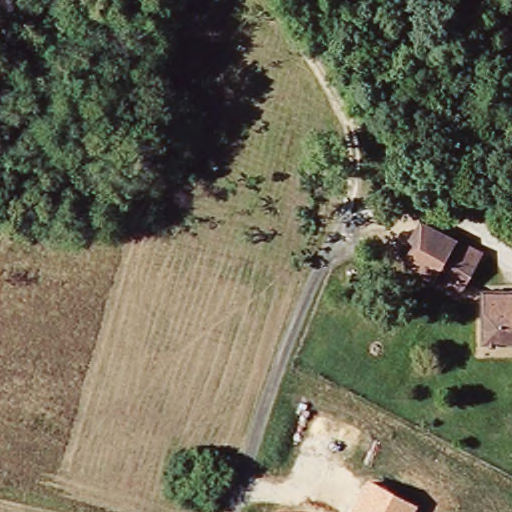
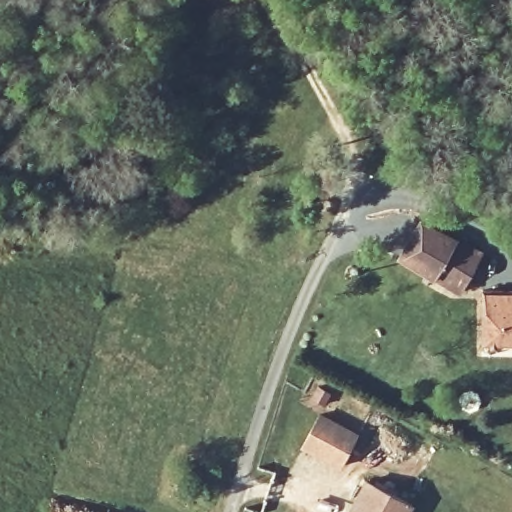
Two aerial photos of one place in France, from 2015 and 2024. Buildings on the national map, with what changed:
unchanged [(402,258),(420,224),(480,255),(462,289),(402,258)]
unchanged [(480,290),(512,289),(512,341),(484,342),(480,290)]
new [(302,446),(320,413),(359,434),(340,467),(302,446)]
unchanged [(411,512),(348,512),(367,476),(415,503),(411,512)]

